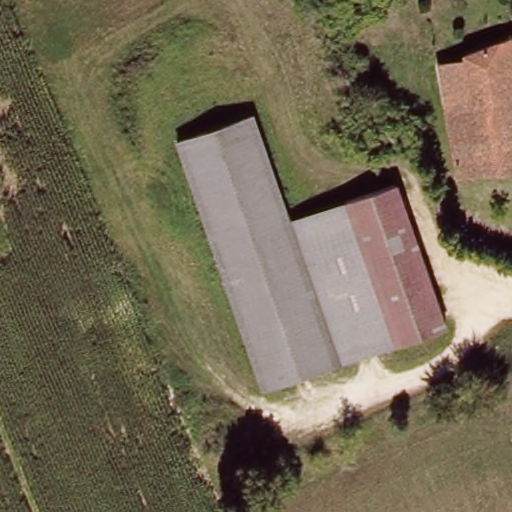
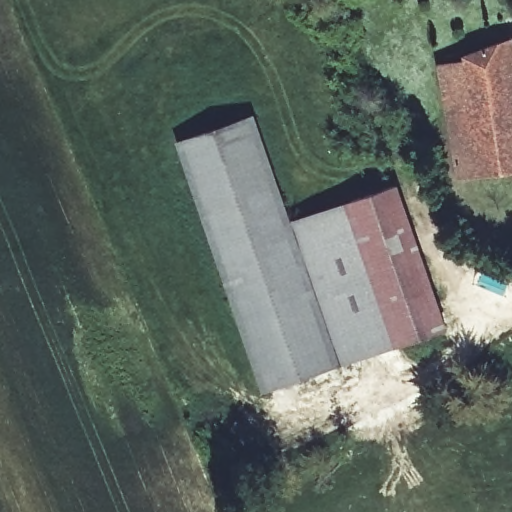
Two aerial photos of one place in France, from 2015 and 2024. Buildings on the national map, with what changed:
unchanged [(512,35),(512,37),(511,36),(512,35)]
unchanged [(435,64),(511,36),(512,37),(512,168),(463,176),(435,64)]
unchanged [(293,216),(396,180),(446,322),(266,387),(177,149),(257,122),(293,216)]

